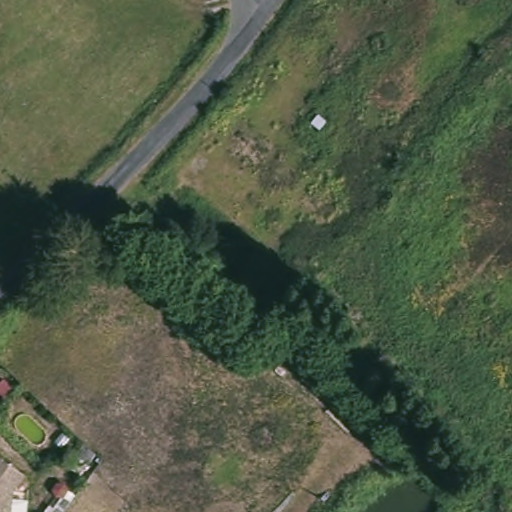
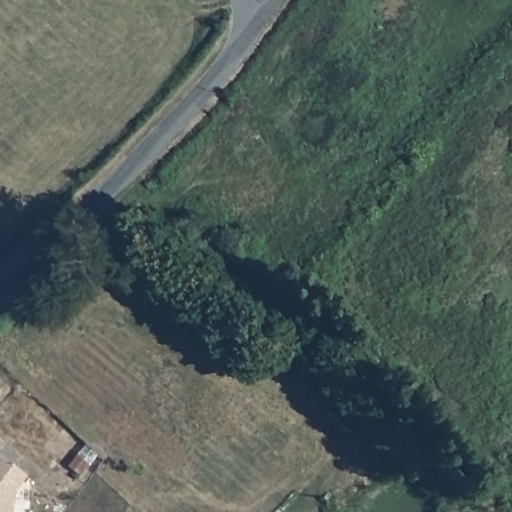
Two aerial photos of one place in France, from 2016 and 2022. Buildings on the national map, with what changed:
unchanged [(10,494),(10,502),(25,504),(24,512),(0,512),(0,462),(21,478),(10,494)]

